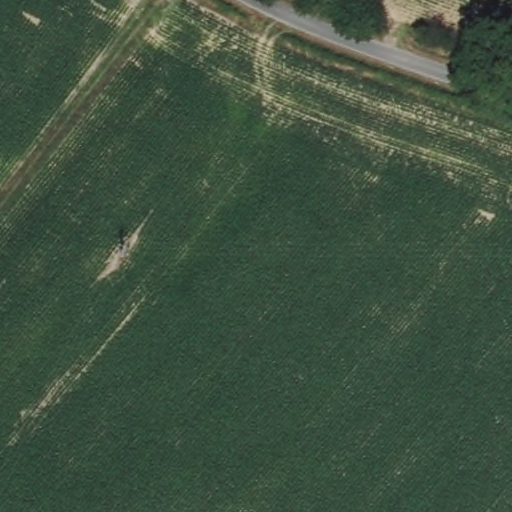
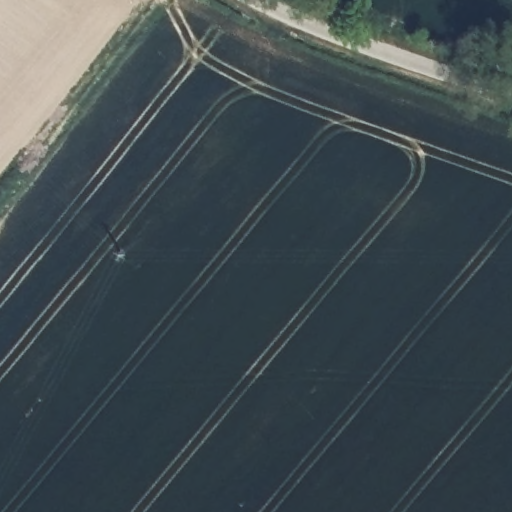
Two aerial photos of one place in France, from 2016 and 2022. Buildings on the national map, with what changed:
unchanged [(242,12),(236,22),(225,16),(233,6),(242,12)]

